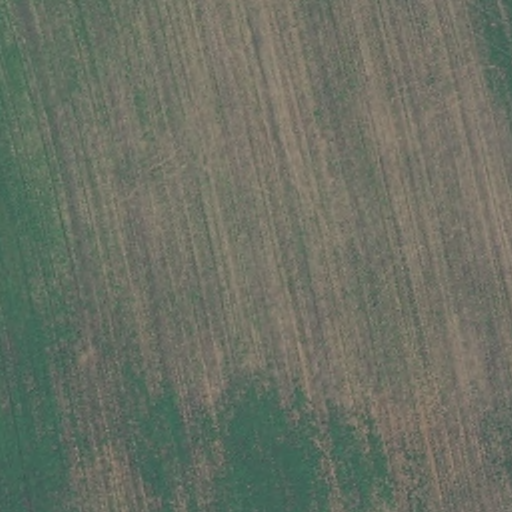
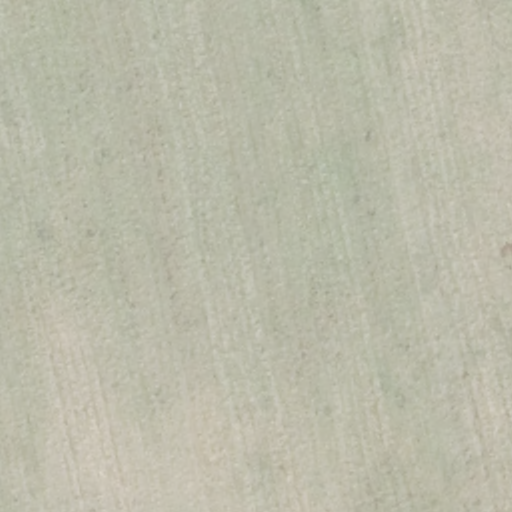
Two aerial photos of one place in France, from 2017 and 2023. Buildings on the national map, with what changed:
[]

